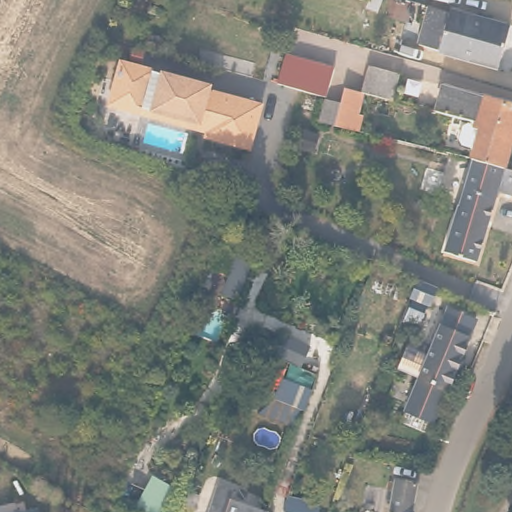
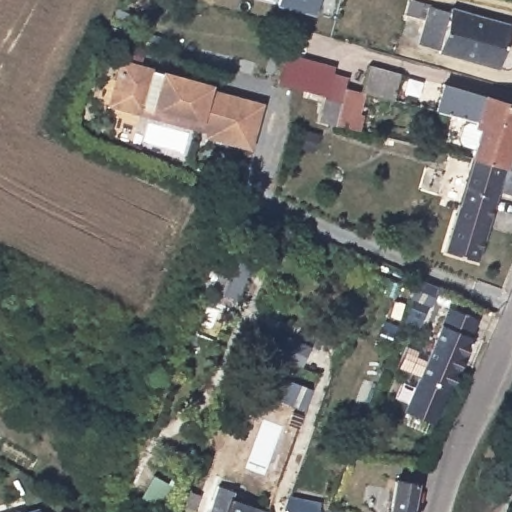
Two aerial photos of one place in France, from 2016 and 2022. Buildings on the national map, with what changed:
new [(279,0),(319,0),(316,16),(278,7),(279,0)]
unchanged [(463,9),(512,24),(512,63),(510,70),(450,52),(450,50),(430,44),(441,8),(462,13),(463,9)]
unchanged [(336,66),(328,95),(312,91),(279,81),(288,52),(336,66)]
unchanged [(121,98),(133,56),(220,82),(219,87),(271,103),(259,144),(217,132),(219,127),(152,107),(121,98)]
unchanged [(362,92),(370,66),(401,75),(393,101),(363,93),(355,128),(337,123),(343,100),(346,88),(362,92)]
unchanged [(474,117),(447,111),(436,108),(442,84),(453,87),(512,101),(512,127),(476,118),(474,117)]
unchanged [(471,155),(474,145),(461,141),(458,136),(463,123),(469,120),(476,122),(476,118),(512,127),(512,141),(506,165),(471,155)]
unchanged [(512,191),(498,186),(479,256),(447,247),(471,155),(506,165),(512,166),(512,191)]
unchanged [(417,280),(419,281),(423,283),(433,287),(435,288),(428,306),(416,301),(412,299),(409,298),(417,280)]
unchanged [(474,320),(431,421),(404,410),(446,308),(474,320)]
unchanged [(304,354),(300,366),(277,357),(281,346),(304,354)]
unchanged [(391,443),(391,449),(385,448),(386,443),(391,443)]
unchanged [(420,478),(414,512),(392,512),(399,475),(420,478)]
unchanged [(218,484),(234,490),(231,498),(249,505),(267,511),(267,512),(207,512),(215,492),(218,484)]
unchanged [(191,512),(177,512),(186,490),(197,495),(191,512)]
unchanged [(13,512),(19,511),(19,512),(13,512)]

